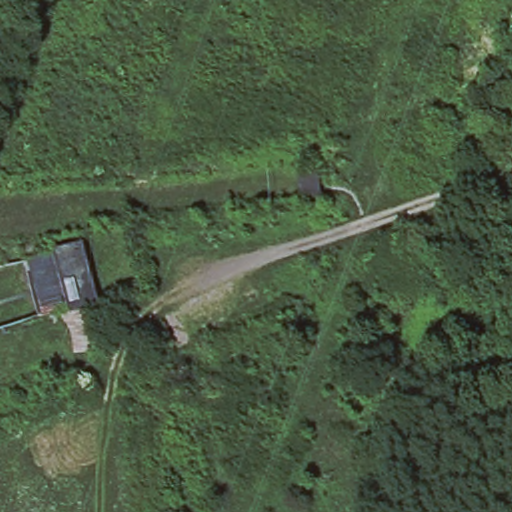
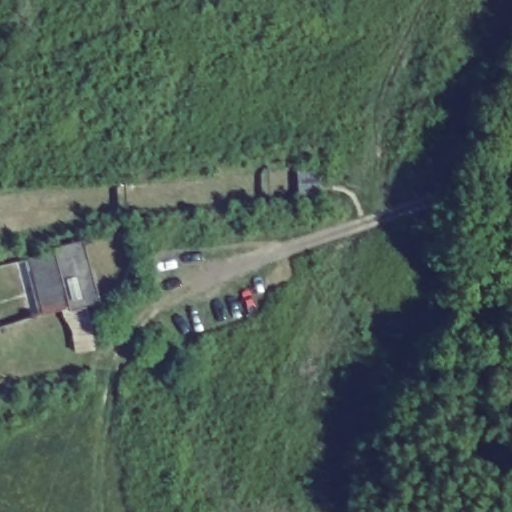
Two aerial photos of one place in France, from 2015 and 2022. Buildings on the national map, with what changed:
unchanged [(93,344),(80,349),(72,353),(65,309),(33,315),(20,247),(84,233),(100,299),(87,304),(90,324),(93,344)]

